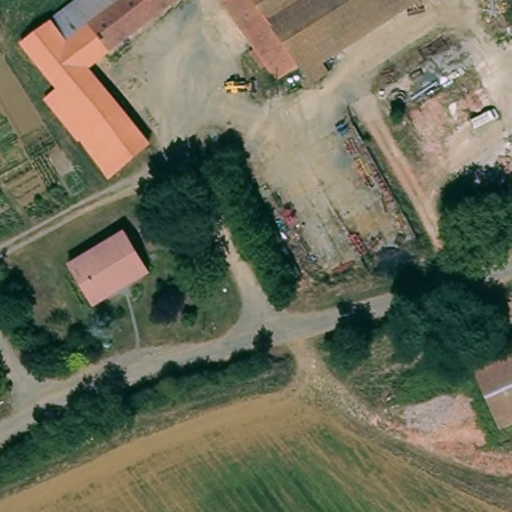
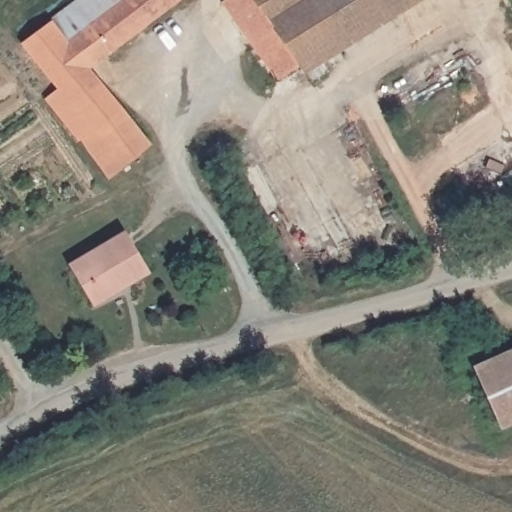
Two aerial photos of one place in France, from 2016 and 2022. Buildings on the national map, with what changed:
unchanged [(94,67),(123,108),(83,138),(49,98),(59,88),(25,42),(79,0),(176,0),(94,67)]
unchanged [(225,7),(236,0),(309,0),(309,1),(290,13),(321,57),(336,79),(320,90),(305,70),(279,88),(264,67),(225,7)]
unchanged [(290,13),(309,1),(310,0),(408,0),(321,57),(290,13)]
unchanged [(114,173),(83,138),(123,108),(145,138),(148,144),(114,173)]
unchanged [(150,273),(92,308),(66,262),(120,227),(150,273)]
unchanged [(501,426),(475,362),(512,347),(512,422),(501,426)]

